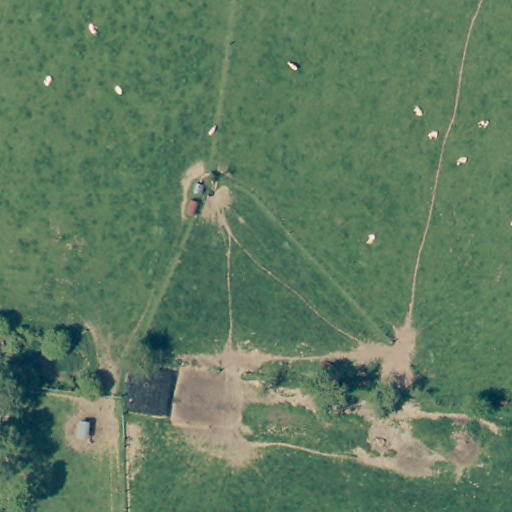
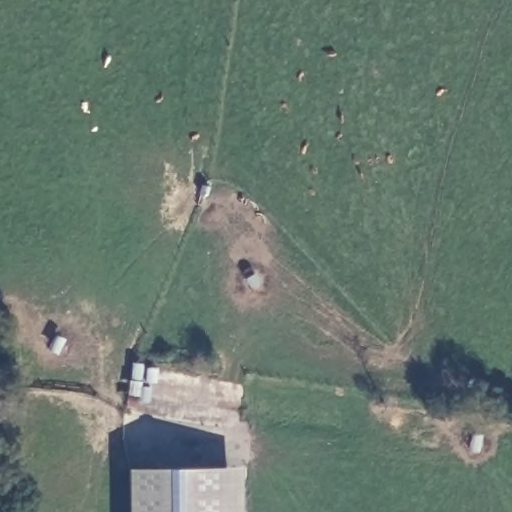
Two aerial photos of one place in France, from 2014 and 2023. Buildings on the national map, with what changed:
new [(129,469),(240,467),(241,512),(130,512),(129,469)]

